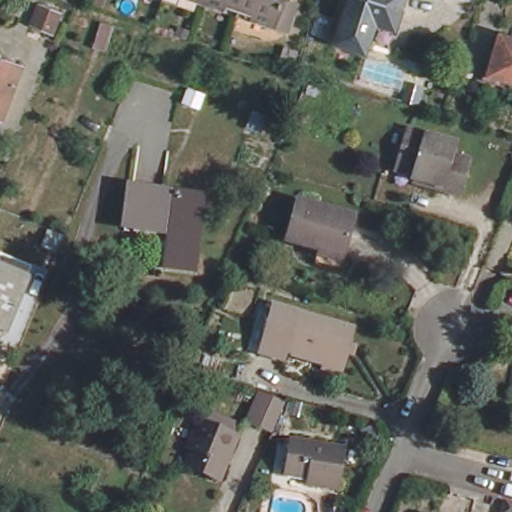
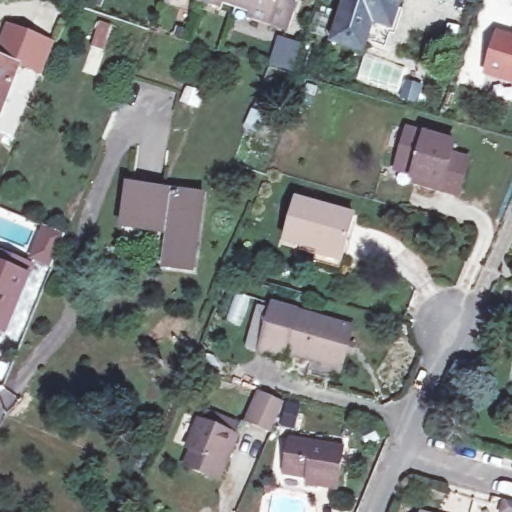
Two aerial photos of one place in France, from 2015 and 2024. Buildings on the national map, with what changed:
unchanged [(281,28),(246,16),(247,11),(218,1),(218,6),(200,0),(282,0),(289,2),(281,28)]
unchanged [(351,42),(319,32),(331,0),(387,0),(381,20),(374,39),(355,32),(351,42)]
new [(6,24),(54,41),(42,75),(18,65),(0,58),(0,42),(6,24)]
unchanged [(512,81),(491,75),(504,34),(512,37),(512,81)]
unchanged [(18,65),(0,114),(0,58),(18,65)]
unchanged [(402,96),(417,100),(414,110),(399,105),(402,96)]
unchanged [(412,176),(394,170),(397,164),(407,130),(453,144),(449,156),(466,161),(456,196),(439,191),(409,183),(411,178),(412,176)]
unchanged [(201,191),(194,268),(162,266),(164,230),(121,227),(125,184),(201,191)]
unchanged [(350,216),(334,270),(311,262),(313,255),(296,251),(297,245),(281,240),(293,200),(350,216)]
new [(64,234),(51,263),(34,256),(46,226),(64,234)]
unchanged [(26,276),(4,328),(0,327),(0,266),(26,276)]
unchanged [(317,370),(319,363),(281,352),(279,360),(254,353),(268,305),(350,330),(339,369),(337,375),(317,370)]
unchanged [(258,394),(283,400),(278,411),(269,430),(248,420),(253,405),(258,394)]
unchanged [(216,482),(183,470),(189,453),(184,451),(194,422),(201,425),(206,415),(231,425),(228,435),(234,438),(216,482)]
unchanged [(339,447),(334,490),(304,485),(304,478),(283,475),(288,440),(339,447)]

